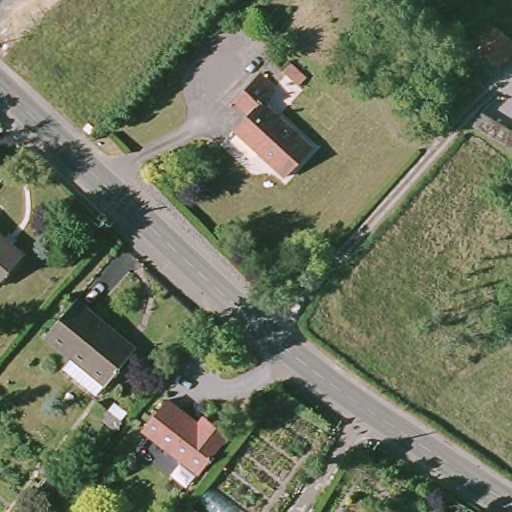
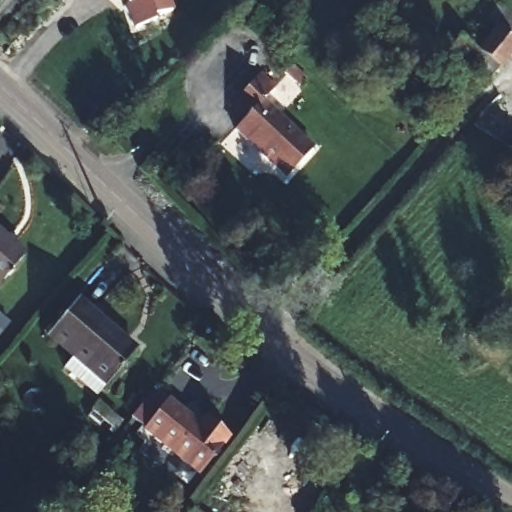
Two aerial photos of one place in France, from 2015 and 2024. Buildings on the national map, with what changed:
new [(132,26),(125,2),(122,0),(171,0),(172,7),(132,26)]
unchanged [(480,45),(497,26),(499,23),(512,34),(512,50),(502,62),(484,82),(480,80),(438,49),(456,27),(480,45)]
unchanged [(260,68),(276,83),(267,96),(325,155),(295,186),(236,126),(250,111),(235,95),(260,68)]
unchanged [(482,109),(512,124),(512,143),(472,122),(482,109)]
unchanged [(0,281),(0,234),(24,255),(0,281)]
unchanged [(49,325),(79,293),(135,345),(105,378),(49,325)]
unchanged [(165,401),(204,431),(212,420),(230,436),(202,471),(144,425),(165,401)]
unchanged [(213,512),(194,512),(201,502),(213,512)]

